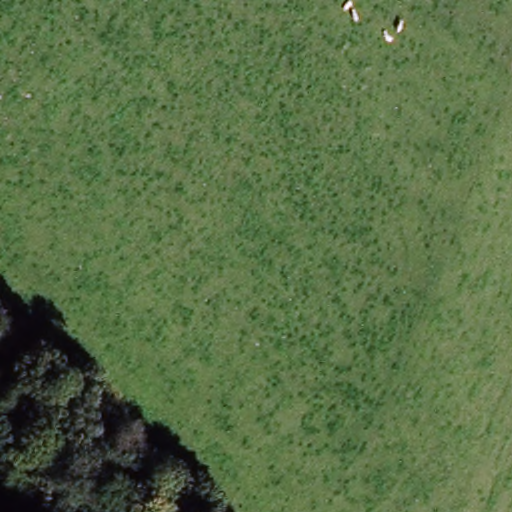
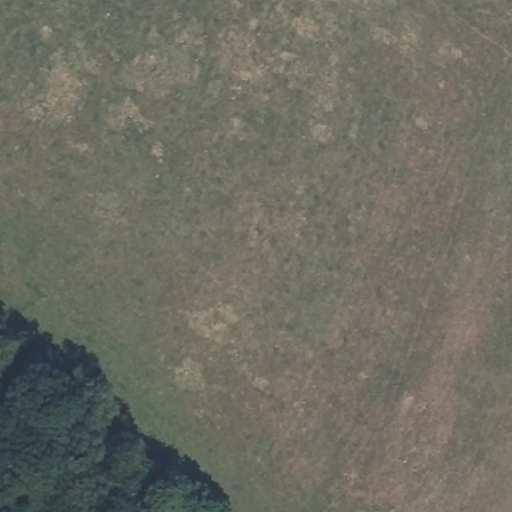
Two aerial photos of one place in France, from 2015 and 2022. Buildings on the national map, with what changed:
[]

